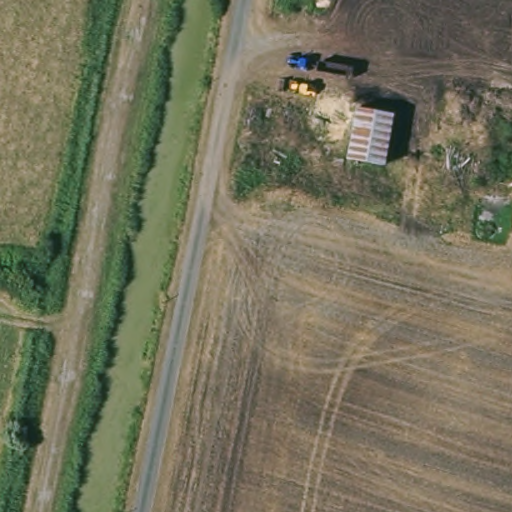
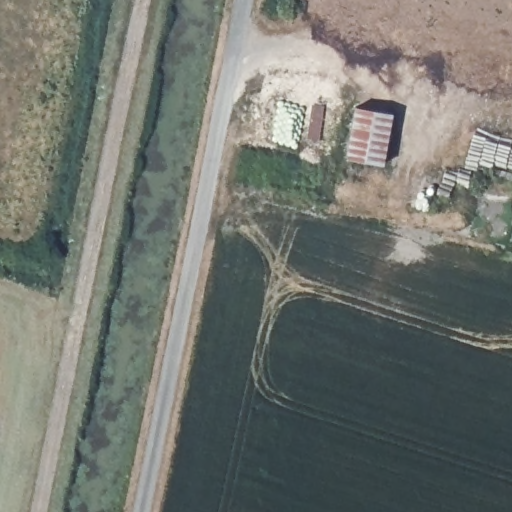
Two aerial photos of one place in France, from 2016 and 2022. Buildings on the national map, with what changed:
unchanged [(351,105),(386,111),(373,194),(340,189),(351,105)]

